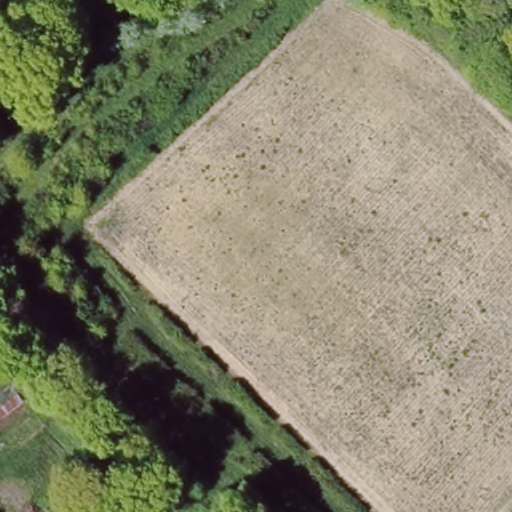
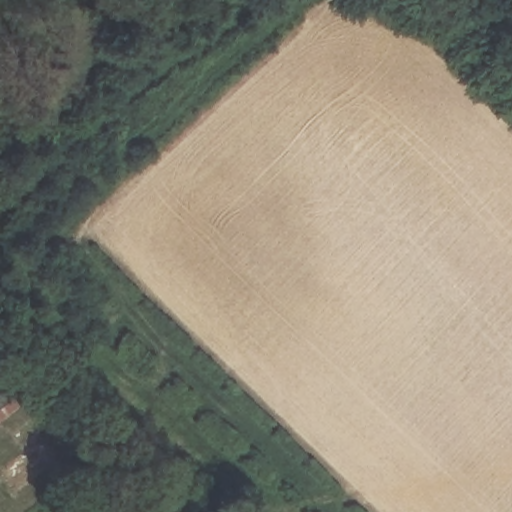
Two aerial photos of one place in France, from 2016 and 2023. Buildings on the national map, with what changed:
unchanged [(0,394),(10,386),(22,403),(0,423),(0,394)]

